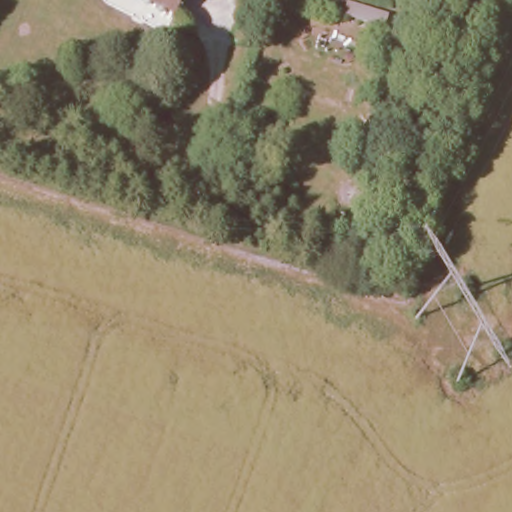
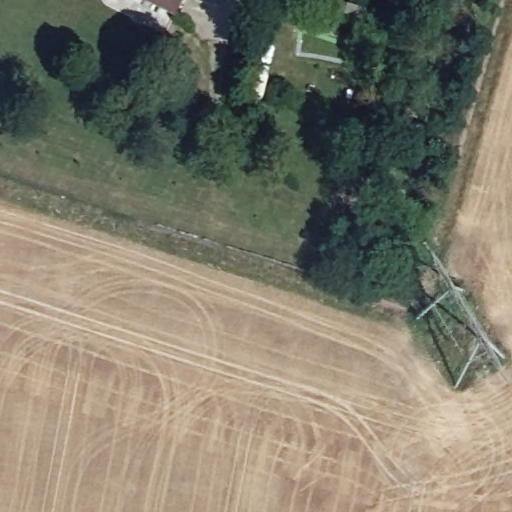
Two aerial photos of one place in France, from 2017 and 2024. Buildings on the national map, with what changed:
unchanged [(143,0),(184,0),(175,17),(143,0)]
unchanged [(308,0),(343,0),(390,15),(387,29),(307,4),(308,0)]

